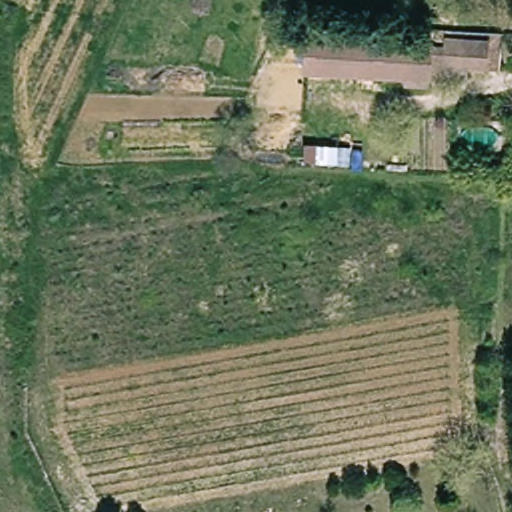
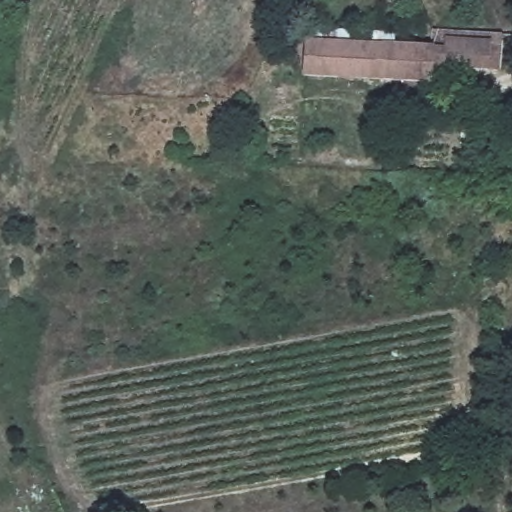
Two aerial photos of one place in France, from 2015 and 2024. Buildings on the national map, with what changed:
unchanged [(497,39),(496,72),(429,71),(430,53),(430,36),(497,39)]
unchanged [(429,71),(429,85),(302,79),(305,47),(430,53),(429,71)]

